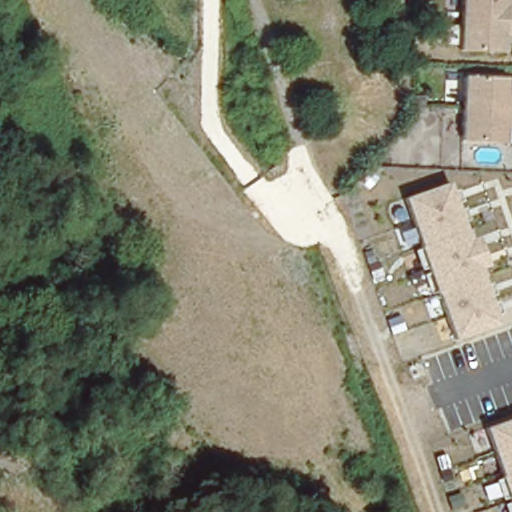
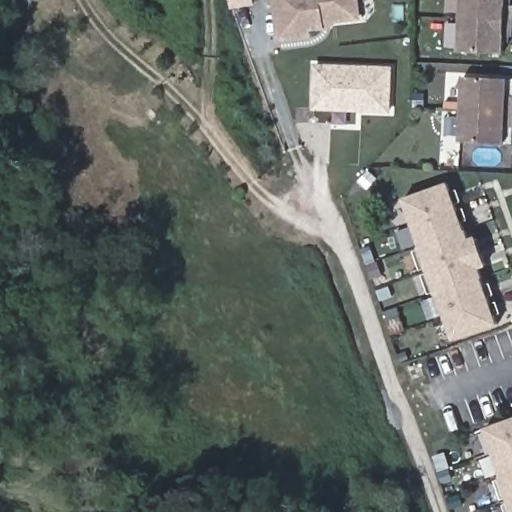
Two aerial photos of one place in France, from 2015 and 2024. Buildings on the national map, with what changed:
new [(363,20),(333,23),(334,27),(312,30),(313,37),(278,43),(272,0),(360,0),(363,20)]
unchanged [(464,0),(508,0),(508,2),(512,2),(512,40),(507,41),(507,56),(462,53),(464,0)]
new [(314,63),(393,66),(391,113),(312,110),(314,63)]
unchanged [(463,76),(510,79),(512,79),(512,144),(508,144),(460,142),(463,76)]
unchanged [(456,340),(404,198),(450,182),(469,240),(479,237),(491,267),(482,270),(501,325),(456,340)]
unchanged [(512,418),(512,505),(484,427),(512,418)]

